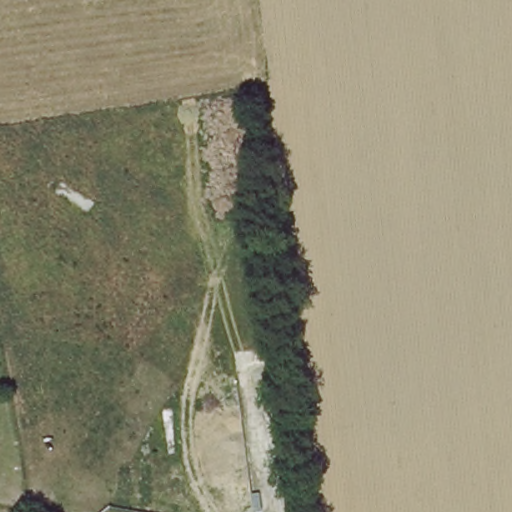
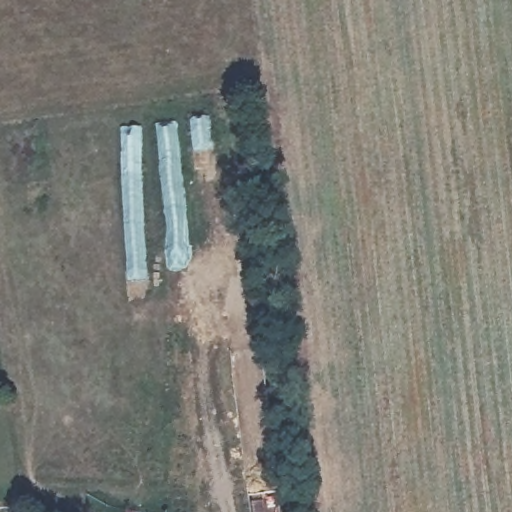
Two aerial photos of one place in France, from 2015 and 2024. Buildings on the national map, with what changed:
unchanged [(0,510),(9,511),(9,512),(0,512),(0,510)]

